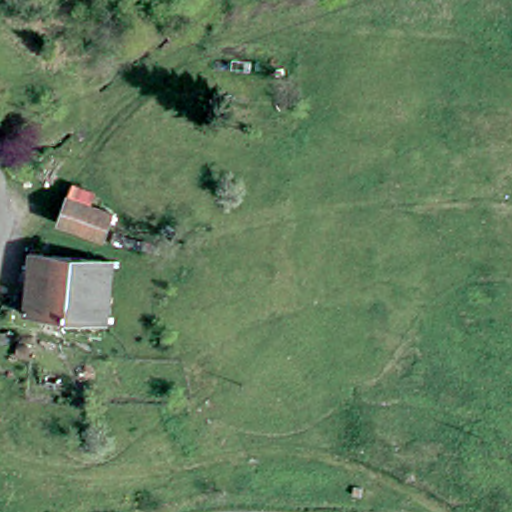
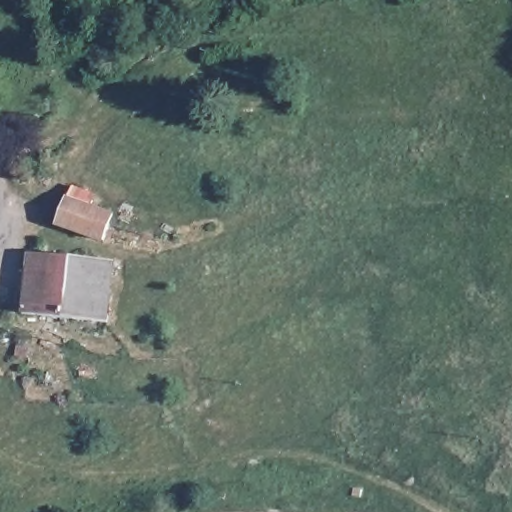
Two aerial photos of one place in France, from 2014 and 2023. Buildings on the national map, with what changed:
unchanged [(69,187),(88,196),(83,206),(111,219),(98,245),(52,222),(69,187)]
unchanged [(33,246),(121,258),(114,316),(73,311),(73,320),(61,318),(62,310),(26,305),(29,280),(33,246)]

